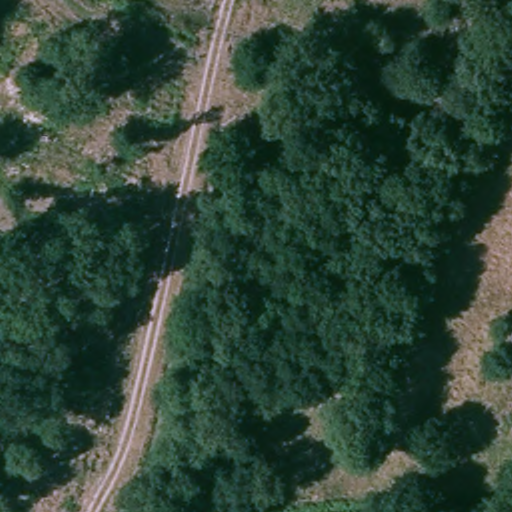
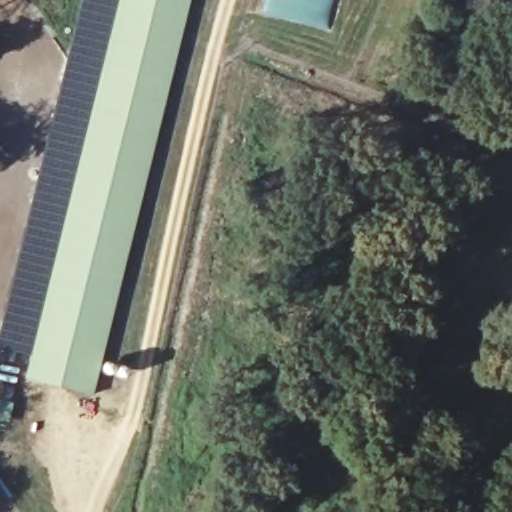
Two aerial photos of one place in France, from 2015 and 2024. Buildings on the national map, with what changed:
new [(0,347),(0,330),(81,0),(119,0),(31,355),(0,347)]
new [(25,377),(119,0),(191,0),(93,393),(25,377)]

